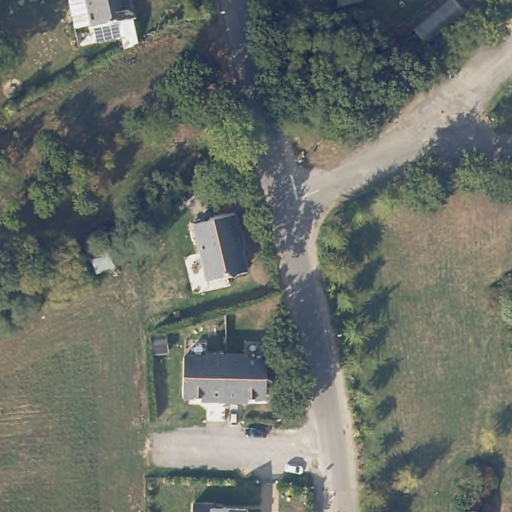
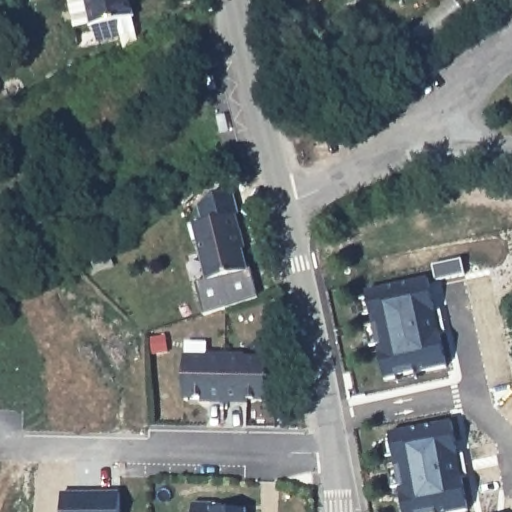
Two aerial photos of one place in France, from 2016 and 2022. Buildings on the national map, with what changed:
unchanged [(139,15),(137,16),(140,30),(125,33),(122,19),(96,24),(96,21),(79,25),(74,0),(135,0),(139,15)]
unchanged [(250,272),(207,283),(194,226),(235,215),(250,272)]
new [(384,381),(378,348),(372,349),(367,326),(373,325),(371,315),(366,316),(363,299),(368,297),(366,290),(429,277),(436,310),(441,308),(446,332),(441,334),(447,366),(384,381)]
unchanged [(187,355),(208,356),(208,353),(227,353),(226,400),(209,400),(209,397),(193,396),(184,396),(185,355),(187,355)]
unchanged [(246,354),(246,357),(268,357),(267,398),(242,398),(242,401),(226,400),(227,353),(246,354)]
new [(406,512),(392,433),(451,421),(458,454),(464,452),(469,475),(463,477),(470,509),(456,512),(406,512)]
unchanged [(217,502),(217,507),(250,508),(250,512),(196,512),(197,502),(217,502)]

